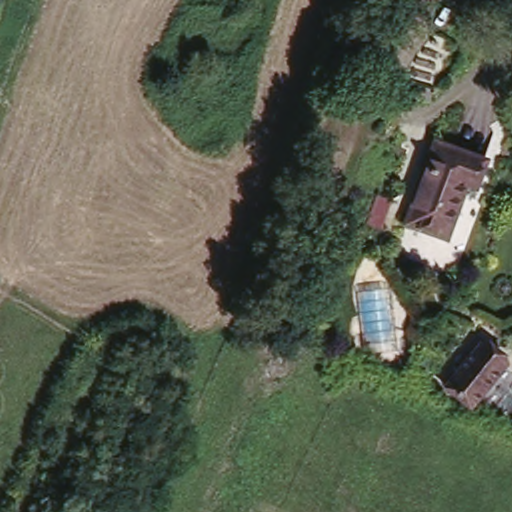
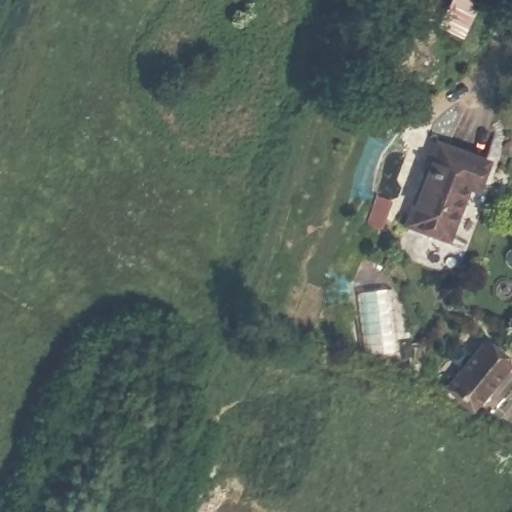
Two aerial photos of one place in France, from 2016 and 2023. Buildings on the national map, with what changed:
unchanged [(397,19),(403,0),(435,0),(427,27),(397,19)]
unchanged [(472,180),(462,178),(443,232),(403,217),(431,142),(434,140),(480,156),(472,180)]
unchanged [(376,193),(393,198),(383,230),(366,223),(376,193)]
unchanged [(478,402),(453,382),(484,341),(508,360),(478,402)]

